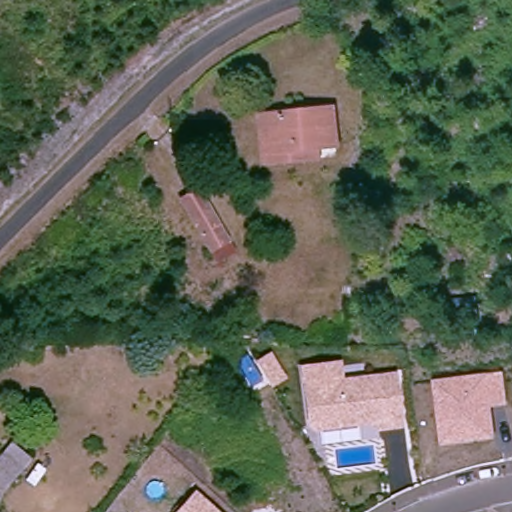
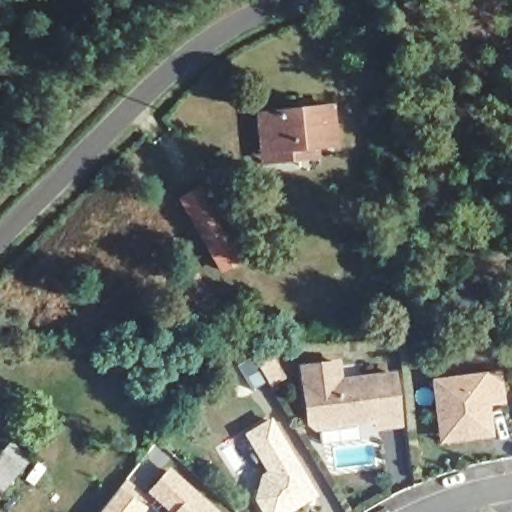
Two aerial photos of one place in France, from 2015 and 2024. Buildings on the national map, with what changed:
unchanged [(331,135),(309,141),(259,151),(252,119),(322,103),(331,135)]
unchanged [(309,141),(311,161),(262,172),(259,151),(309,141)]
unchanged [(236,241),(212,256),(176,198),(200,185),(236,241)]
unchanged [(341,361),(344,379),(397,371),(401,419),(403,430),(375,434),(374,424),(321,433),(307,425),(301,366),(341,361)]
unchanged [(496,438),(441,445),(431,381),(486,374),(503,372),(507,406),(491,407),(496,438)]
new [(256,501),(262,476),(267,472),(245,436),(272,419),(318,496),(291,512),(263,512),(256,501)]
unchanged [(11,441),(35,460),(0,504),(0,454),(11,441)]
unchanged [(148,491),(170,466),(220,512),(170,512),(148,491)]

